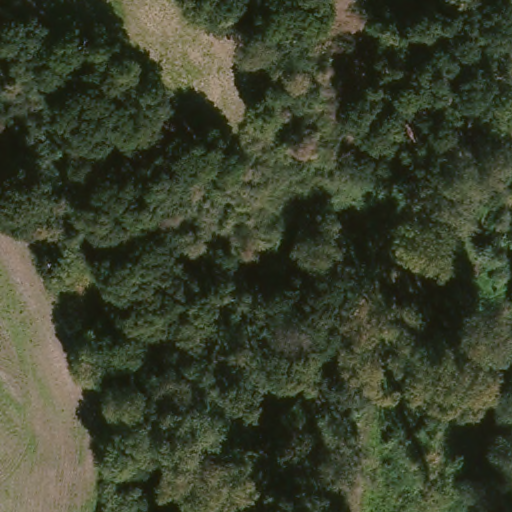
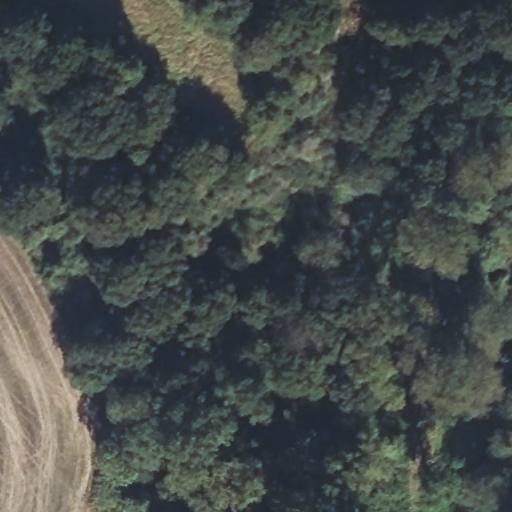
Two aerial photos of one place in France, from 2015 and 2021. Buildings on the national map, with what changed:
[]

